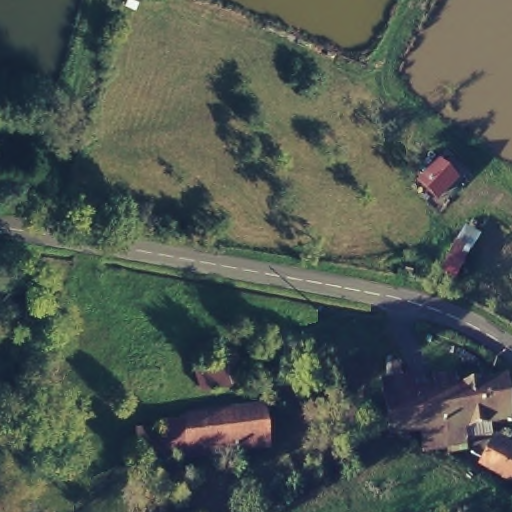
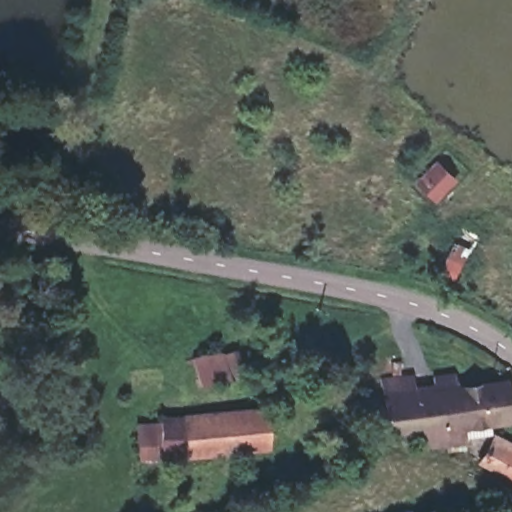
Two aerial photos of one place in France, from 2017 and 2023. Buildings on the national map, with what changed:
unchanged [(419,188),(413,183),(436,156),(458,176),(436,202),(419,188)]
unchanged [(468,260),(449,247),(465,224),(482,235),(468,260)]
unchanged [(233,344),(240,369),(194,381),(188,357),(233,344)]
unchanged [(418,382),(420,387),(505,374),(510,411),(488,414),(489,422),(464,427),(464,432),(423,436),(421,424),(387,427),(384,387),(418,382)]
unchanged [(265,402),(266,451),(161,453),(160,413),(265,402)]
unchanged [(512,445),(512,475),(481,459),(495,435),(512,445)]

